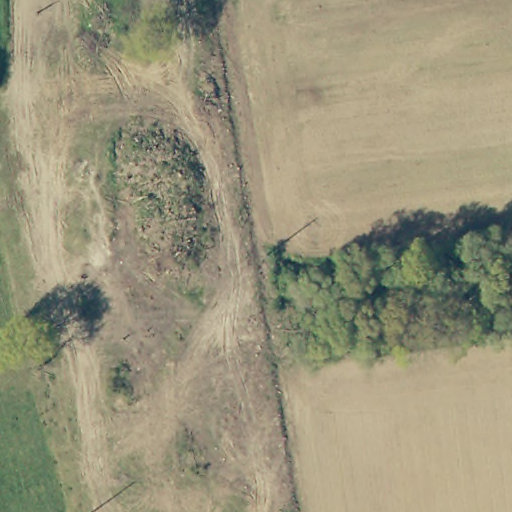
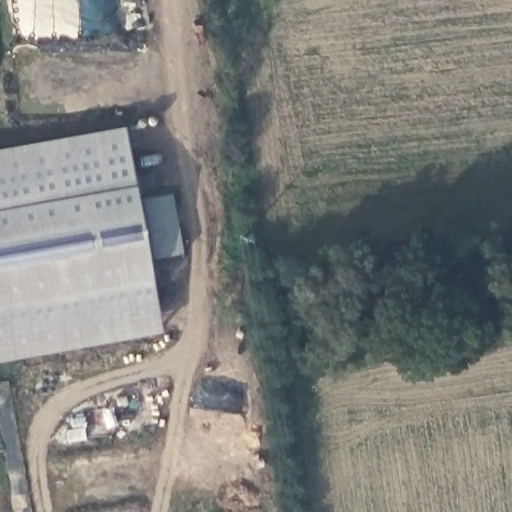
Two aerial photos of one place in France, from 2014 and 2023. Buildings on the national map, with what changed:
new [(138,201),(172,195),(182,254),(150,260),(151,272),(161,333),(0,360),(0,149),(125,127),(138,201)]

